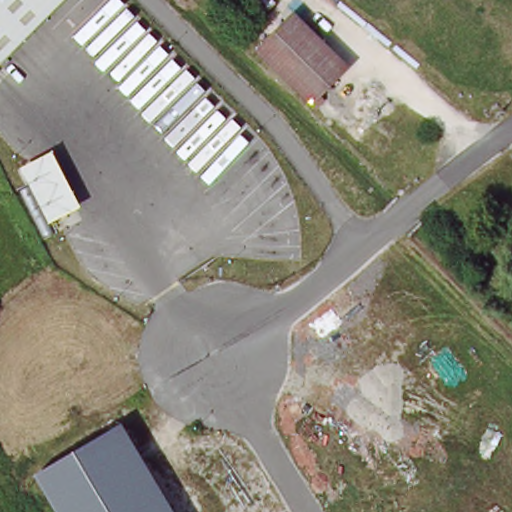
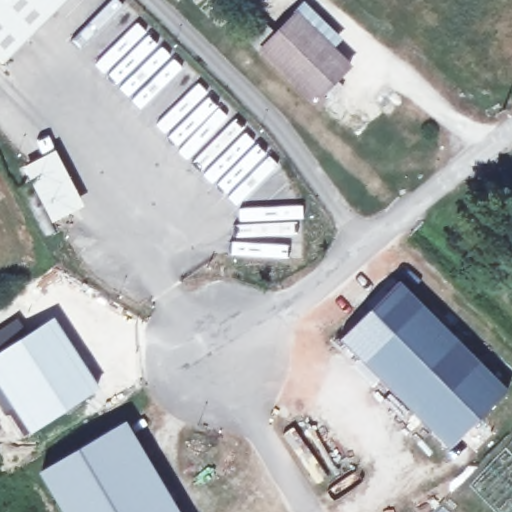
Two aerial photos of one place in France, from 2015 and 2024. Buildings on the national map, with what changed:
unchanged [(2,65),(0,63),(0,0),(67,0),(2,65)]
new [(307,4),(341,38),(334,45),(301,11),(307,4)]
unchanged [(351,68),(316,103),(260,51),(294,16),(351,68)]
unchanged [(83,205),(51,222),(24,166),(55,152),(83,205)]
new [(333,337),(393,286),(504,390),(446,446),(333,337)]
new [(27,434),(0,391),(0,351),(51,318),(97,388),(27,434)]
unchanged [(126,425),(177,512),(62,512),(40,474),(126,425)]

